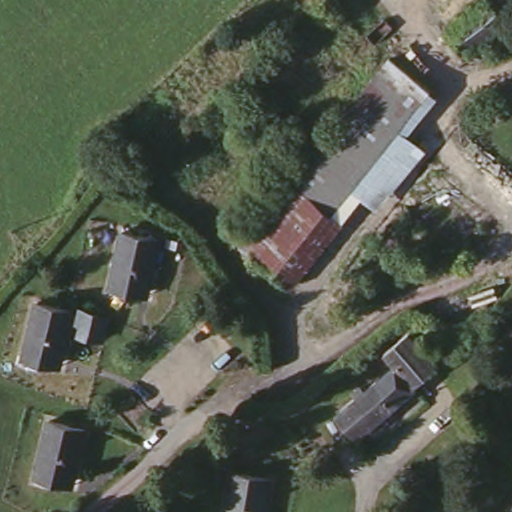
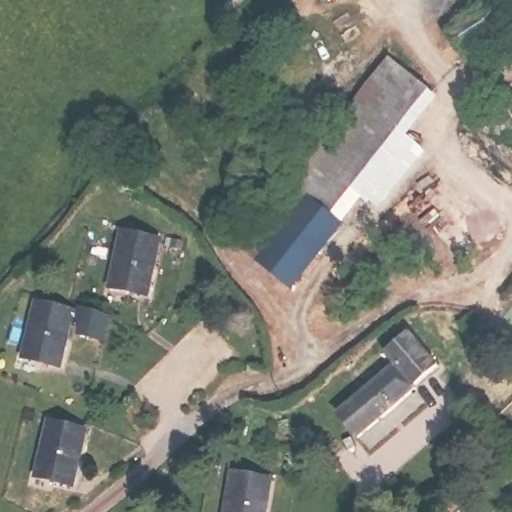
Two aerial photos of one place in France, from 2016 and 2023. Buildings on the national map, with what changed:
unchanged [(480,0),(493,0),(510,22),(467,57),(445,28),(480,0)]
unchanged [(390,60),(438,99),(406,139),(428,154),(379,214),(356,200),(336,225),(289,189),(390,60)]
unchanged [(336,225),(342,230),(293,293),(241,251),(289,189),(336,225)]
unchanged [(143,291),(112,286),(123,229),(161,238),(153,284),(152,292),(143,291)]
unchanged [(56,365),(25,359),(38,298),(75,306),(65,358),(63,366),(56,365)]
unchanged [(356,398),(349,389),(361,380),(367,387),(396,364),(386,350),(411,329),(441,367),(362,438),(340,412),(356,398)]
unchanged [(70,483),(36,477),(50,415),(89,423),(78,475),(77,484),(70,483)]
unchanged [(274,475),(268,512),(227,512),(234,470),(274,475)]

